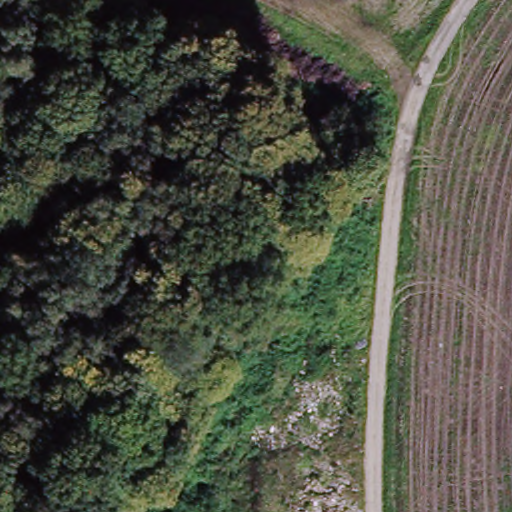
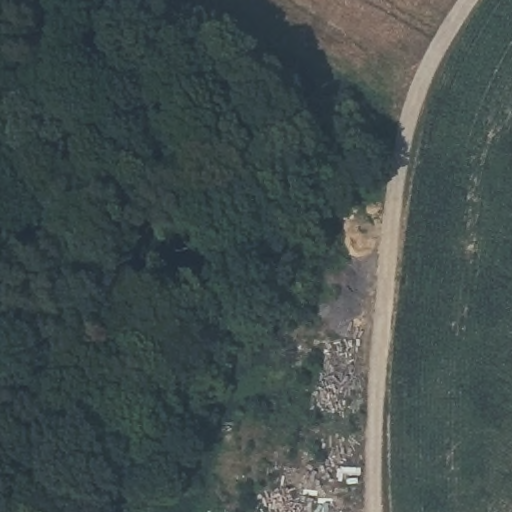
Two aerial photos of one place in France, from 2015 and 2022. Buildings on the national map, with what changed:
[]

